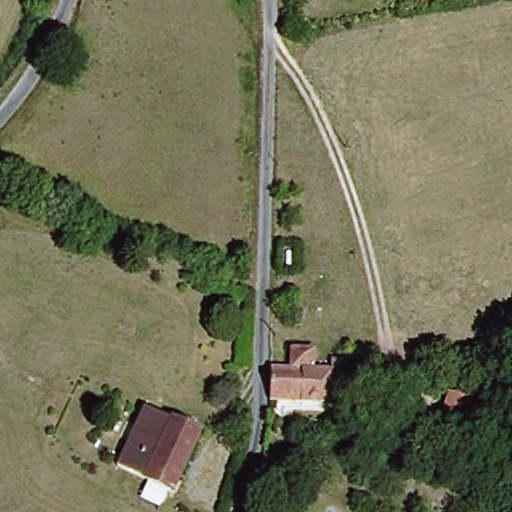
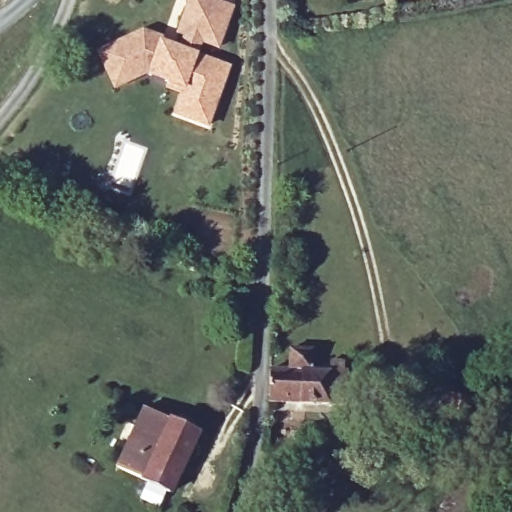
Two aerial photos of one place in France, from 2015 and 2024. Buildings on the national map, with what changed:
new [(173,39),(187,0),(220,0),(236,6),(221,50),(204,45),(201,55),(233,66),(211,128),(174,114),(181,93),(167,89),(168,84),(146,76),(116,91),(98,52),(143,30),(173,39)]
unchanged [(268,372),(281,373),(282,348),(306,350),(305,373),(326,373),(328,364),(346,365),(351,401),(329,404),(267,409),(268,372)]
unchanged [(479,381),(469,410),(443,401),(452,373),(479,381)]
unchanged [(169,427),(144,482),(121,472),(114,471),(143,413),(153,416),(169,425),(169,427)]
unchanged [(196,439),(173,492),(144,482),(169,427),(196,439)]

